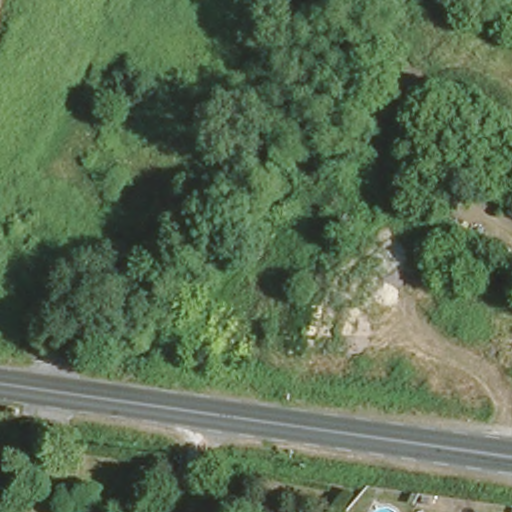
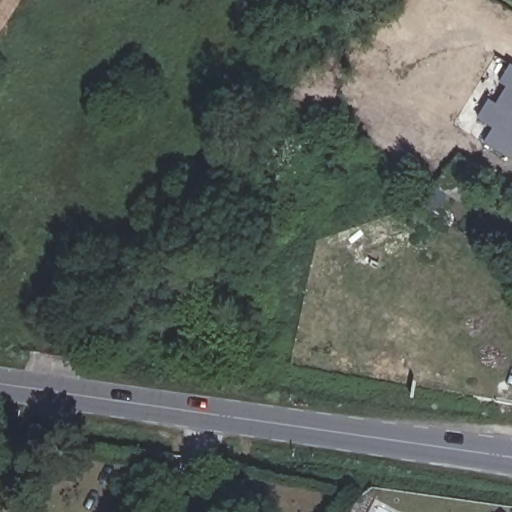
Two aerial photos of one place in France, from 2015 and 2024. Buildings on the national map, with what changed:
new [(512,64),(512,159),(484,142),(492,127),(477,117),(488,99),(496,103),(506,87),(499,82),(511,63),(512,64)]

